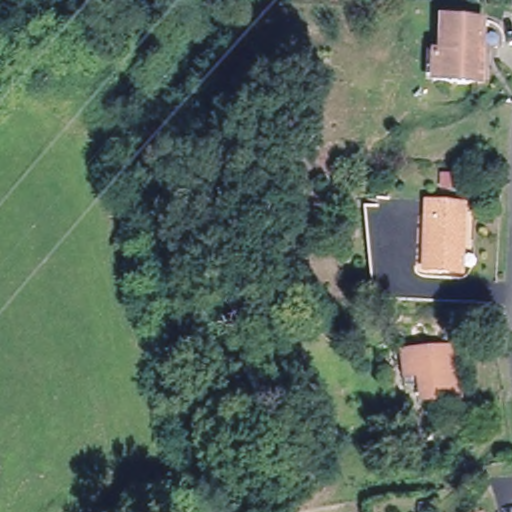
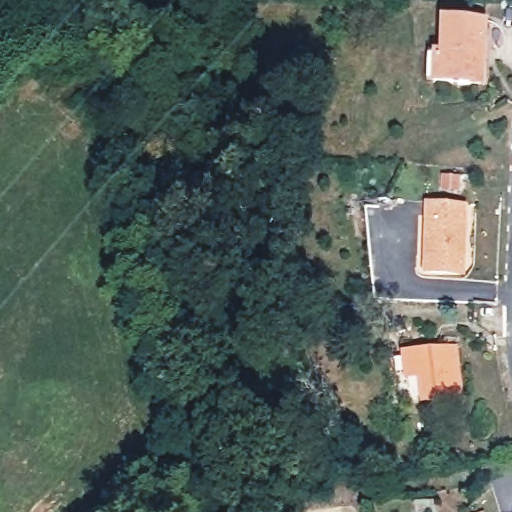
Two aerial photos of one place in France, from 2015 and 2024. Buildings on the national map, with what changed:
unchanged [(433,51),(442,51),(443,19),(483,20),(480,81),(432,80),(433,51)]
unchanged [(433,197),(468,198),(466,268),(431,267),(433,197)]
unchanged [(455,348),(459,398),(418,403),(414,378),(405,378),(403,355),(455,348)]

